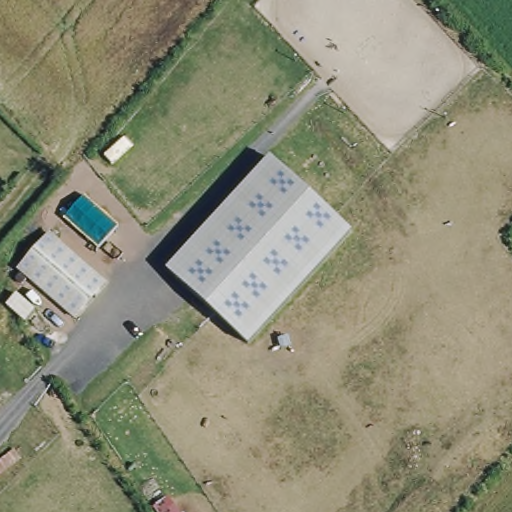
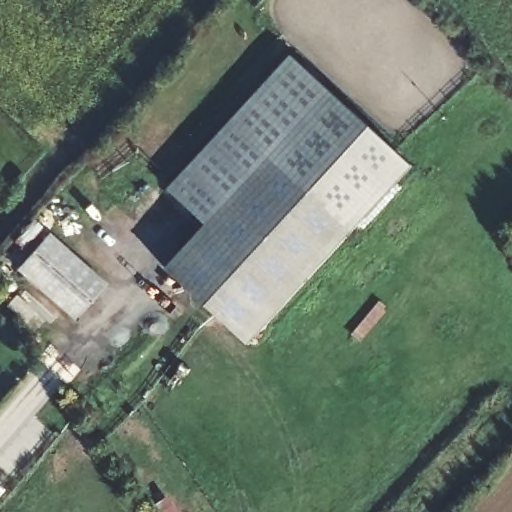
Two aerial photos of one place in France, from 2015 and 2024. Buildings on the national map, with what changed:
new [(271,159),(208,226),(169,189),(292,57),(413,169),(353,234),(271,159)]
unchanged [(353,234),(249,346),(167,271),(271,159),(353,234)]
unchanged [(17,270),(51,233),(108,283),(75,320),(17,270)]

